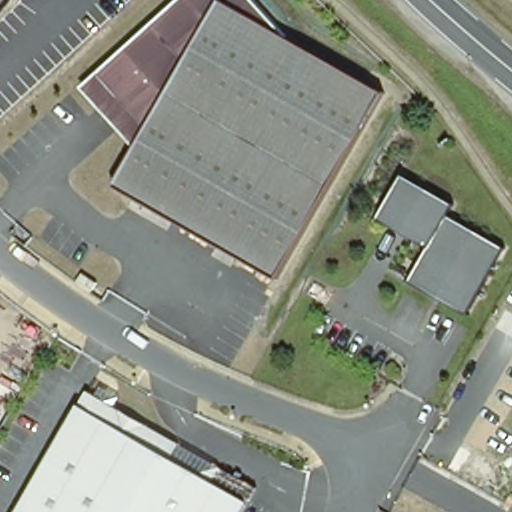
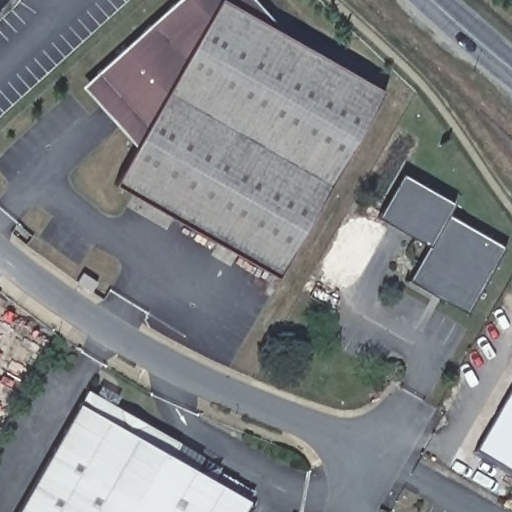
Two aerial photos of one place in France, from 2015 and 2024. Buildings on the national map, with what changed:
unchanged [(290,39),(388,97),(278,282),(113,185),(140,138),(99,92),(106,85),(96,73),(178,0),(255,0),(290,39)]
unchanged [(455,205),(450,217),(504,250),(468,316),(417,282),(433,247),(385,220),(408,178),(455,205)]
unchanged [(175,455),(252,501),(246,512),(19,512),(91,388),(183,442),(175,455)]
new [(478,454),(512,393),(512,474),(478,454)]

